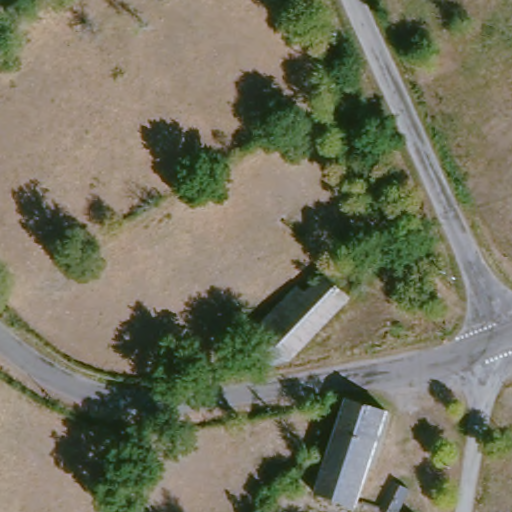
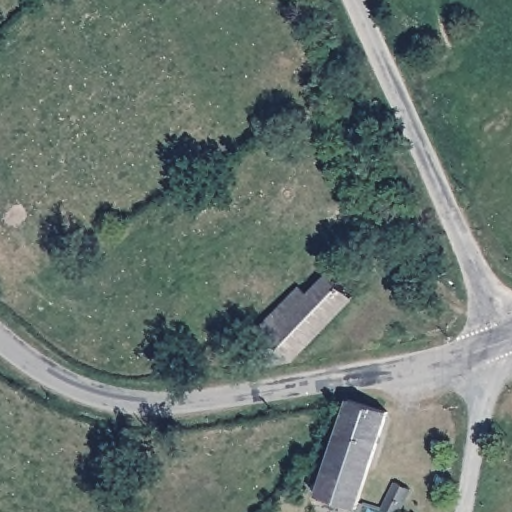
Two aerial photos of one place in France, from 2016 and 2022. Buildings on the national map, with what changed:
unchanged [(260,357),(286,351),(267,330),(306,283),(317,293),(332,274),(357,297),(304,357),(262,369),(260,357)]
unchanged [(330,500),(347,402),(389,409),(369,504),(367,511),(330,500)]
unchanged [(405,483),(421,488),(412,512),(395,512),(405,483)]

